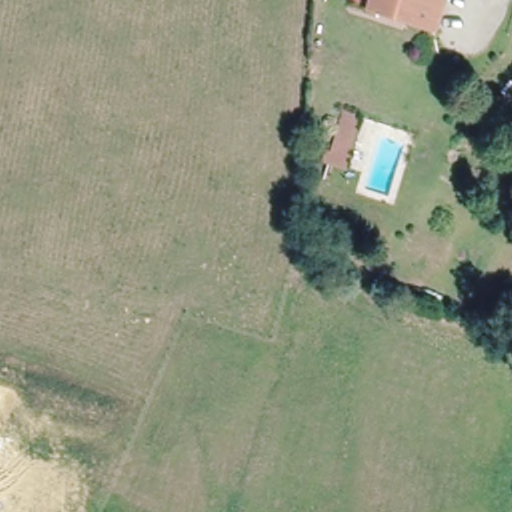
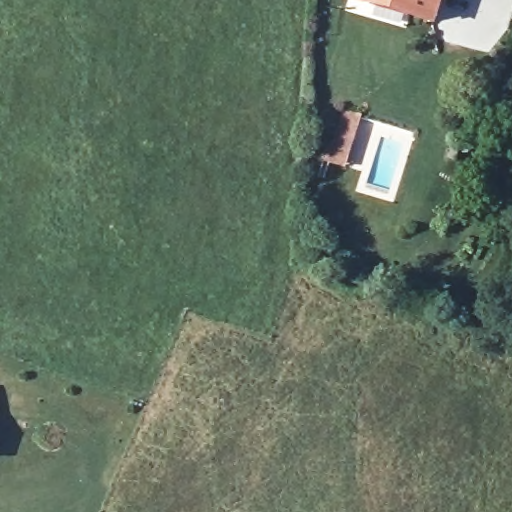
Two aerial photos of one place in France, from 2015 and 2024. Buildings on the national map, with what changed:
unchanged [(358,0),(371,0),(369,4),(358,0)]
unchanged [(369,4),(371,0),(437,0),(430,23),(369,4)]

